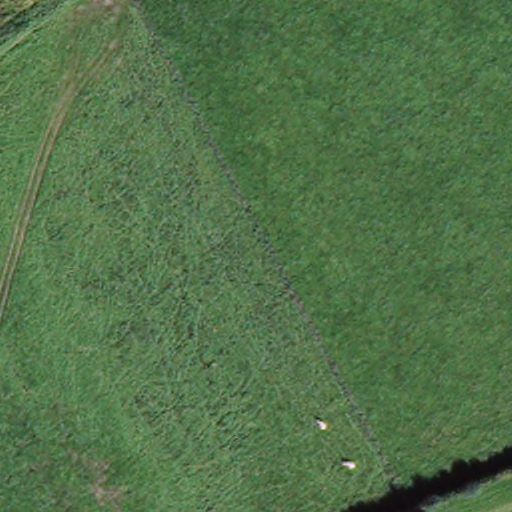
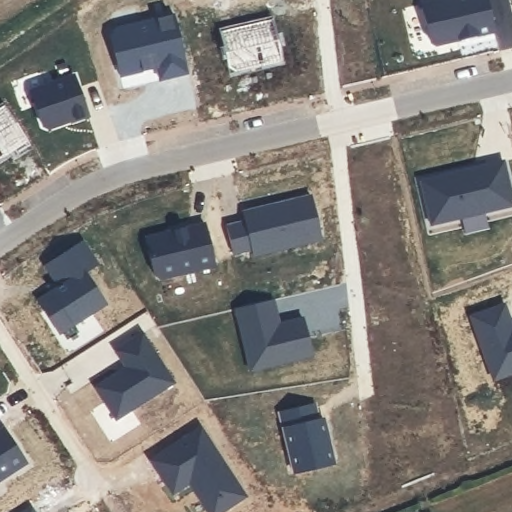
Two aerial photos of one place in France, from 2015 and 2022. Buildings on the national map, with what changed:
new [(426,0),(485,0),(492,29),(474,33),(473,31),(460,34),(461,36),(434,42),(429,39),(420,2),(426,0)]
new [(114,27),(173,12),(188,70),(159,77),(155,61),(141,65),(143,69),(120,75),(109,35),(114,27)]
new [(270,19),(279,58),(259,63),(259,62),(228,69),(219,31),(270,19)]
new [(71,73),(86,114),(68,120),(68,118),(46,127),(40,124),(28,89),(71,73)]
new [(472,166),(476,169),(485,167),(484,162),(502,159),(512,202),(429,222),(419,178),(472,166)]
new [(273,202),(273,205),(286,202),(286,199),(309,194),(319,237),(251,254),(241,209),(273,202)]
new [(203,221),(213,262),(153,276),(143,235),(203,221)]
new [(56,285),(43,264),(79,241),(93,262),(81,270),(102,302),(56,332),(35,299),(56,285)]
new [(270,298),(274,315),(272,316),(274,323),(300,317),(309,355),(247,369),(233,307),(270,298)]
new [(504,302),(509,318),(506,319),(509,327),(512,326),(512,370),(493,377),(471,314),(504,302)]
new [(118,370),(120,373),(127,370),(114,349),(139,332),(171,381),(114,417),(93,386),(118,370)]
new [(312,403),(316,418),(321,417),(332,462),(292,471),(278,411),(312,403)]
new [(241,497),(216,512),(203,512),(191,492),(195,490),(189,480),(168,493),(146,460),(196,427),(241,497)]
new [(0,476),(0,442),(15,466),(0,476)]
new [(34,512),(19,512),(30,505),(34,512)]

